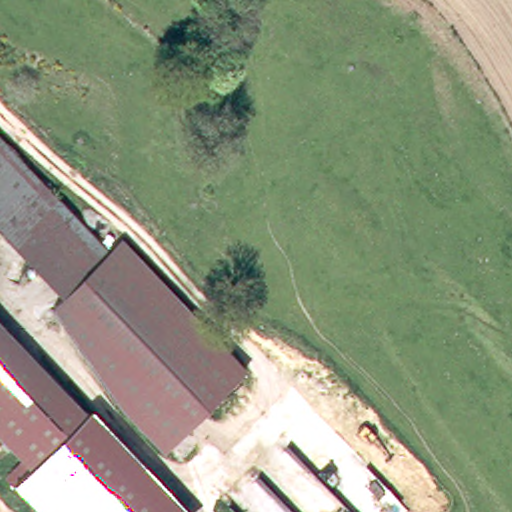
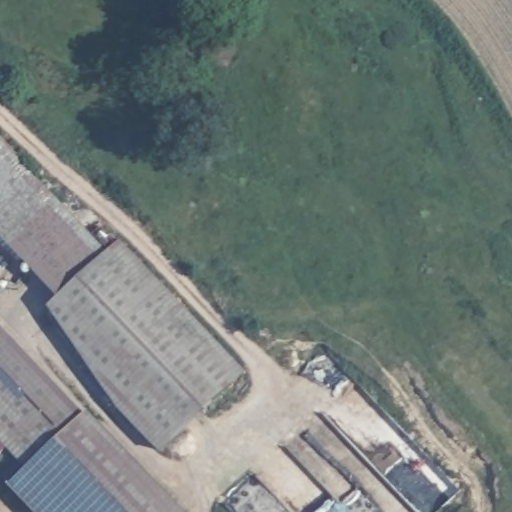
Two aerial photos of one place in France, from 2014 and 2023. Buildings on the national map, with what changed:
unchanged [(108,249),(121,236),(246,367),(163,447),(119,405),(53,302),(63,293),(39,268),(30,260),(0,227),(0,136),(70,210),(108,249)]
unchanged [(92,411),(188,512),(39,512),(13,485),(28,469),(0,439),(0,322),(87,416),(92,411)]

